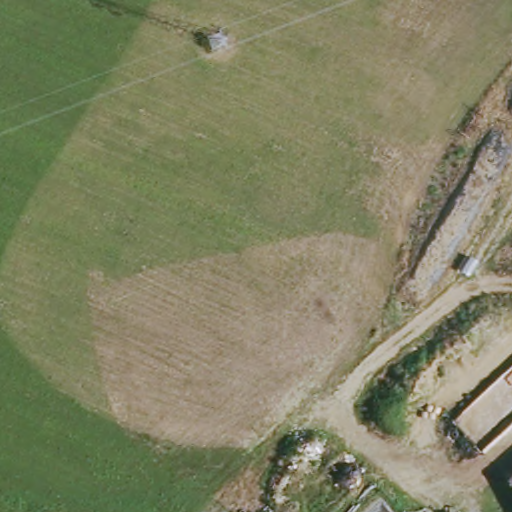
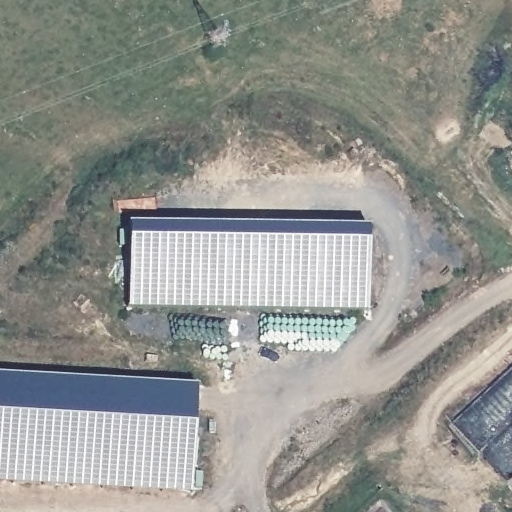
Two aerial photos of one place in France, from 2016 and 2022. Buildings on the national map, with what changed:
new [(128,226),(369,226),(366,308),(130,308),(128,226)]
new [(191,493),(0,484),(0,376),(197,385),(191,493)]
unchanged [(509,481),(512,478),(512,485),(509,481)]

